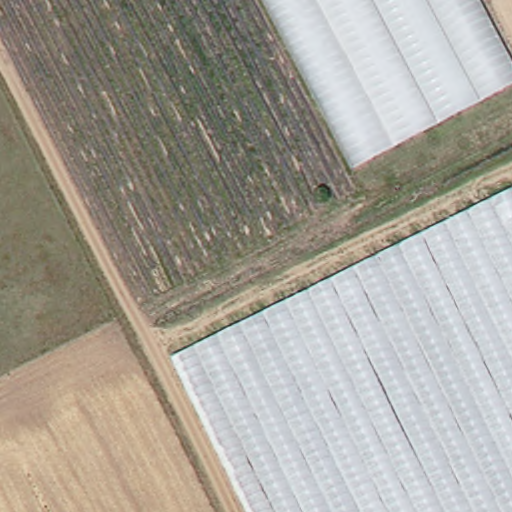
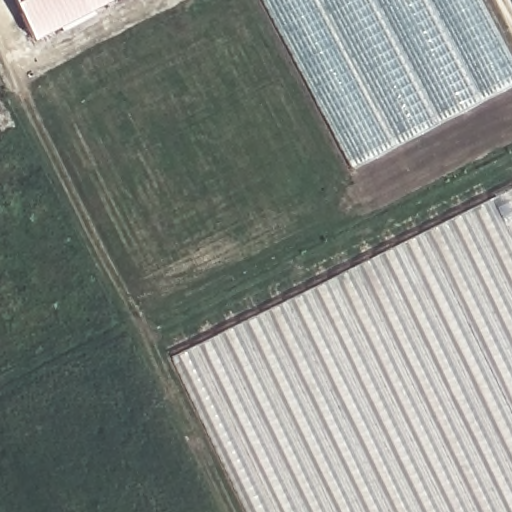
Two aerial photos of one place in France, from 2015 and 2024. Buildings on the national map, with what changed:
new [(12,0),(109,0),(33,40),(12,0)]
unchanged [(512,65),(512,79),(357,167),(265,0),(477,0),(512,65)]
unchanged [(249,512),(172,354),(512,189),(512,512),(249,512)]

